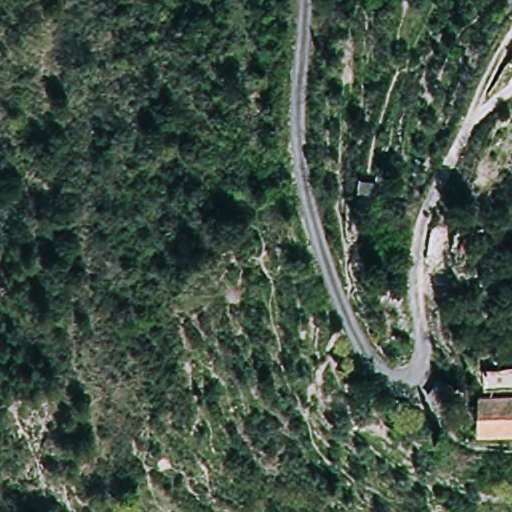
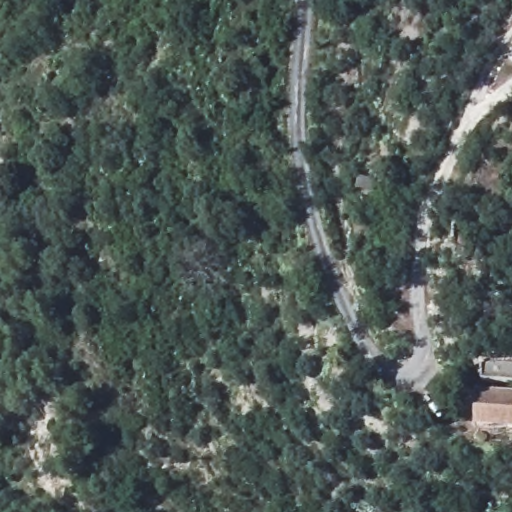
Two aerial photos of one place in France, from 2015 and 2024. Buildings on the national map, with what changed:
unchanged [(478,362),(512,366),(512,385),(479,384),(478,362)]
unchanged [(512,397),(512,429),(477,424),(482,392),(512,397)]

